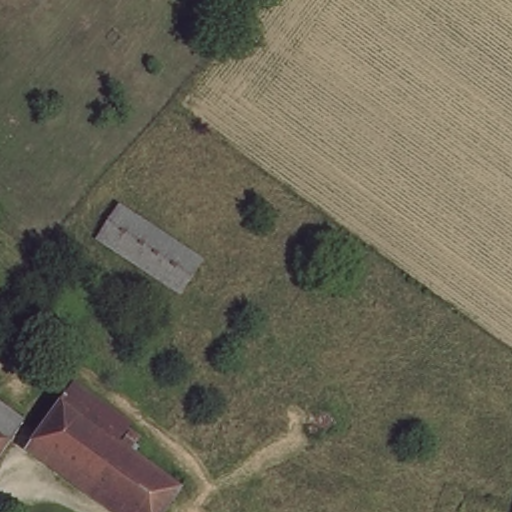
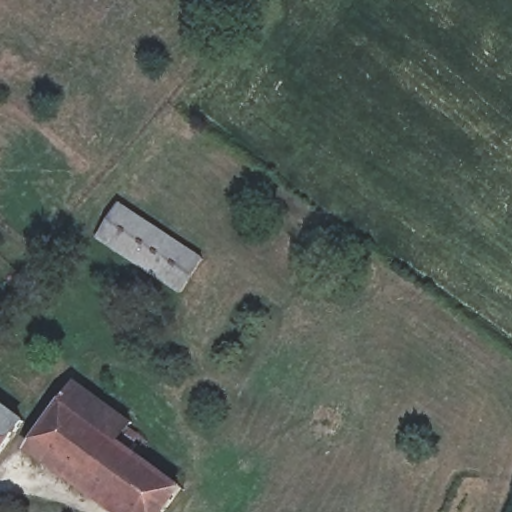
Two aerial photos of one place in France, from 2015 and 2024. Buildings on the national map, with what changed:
unchanged [(181,292),(97,236),(120,203),(203,257),(181,292)]
unchanged [(68,400),(81,381),(135,421),(123,440),(68,400)]
unchanged [(35,446),(41,437),(68,400),(123,440),(186,485),(167,512),(125,512),(90,486),(35,446)]
unchanged [(0,450),(0,403),(22,420),(0,450)]

